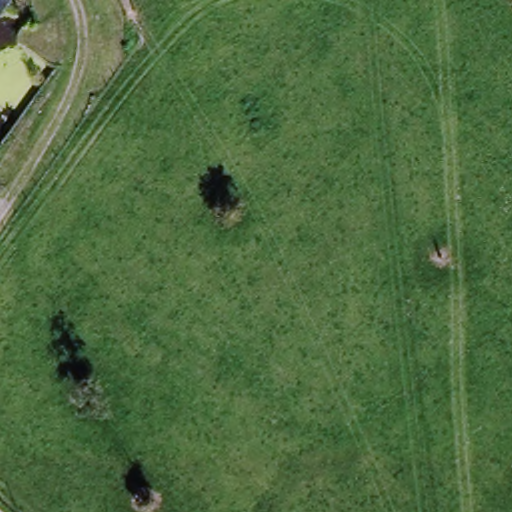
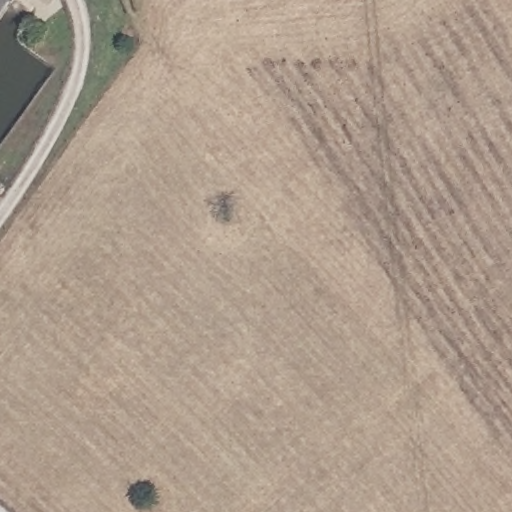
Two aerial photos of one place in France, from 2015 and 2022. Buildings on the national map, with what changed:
unchanged [(1,0),(8,6),(0,17),(0,0),(1,0)]

